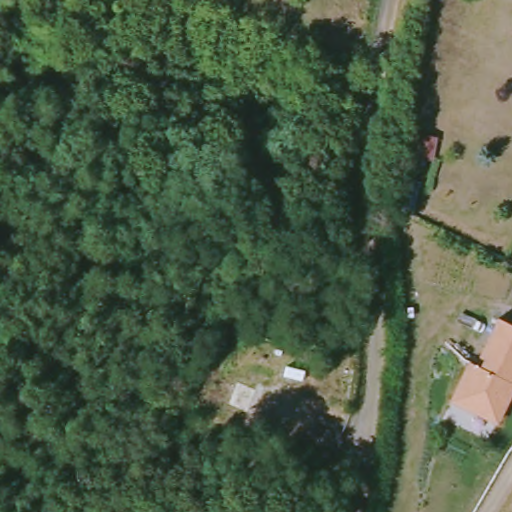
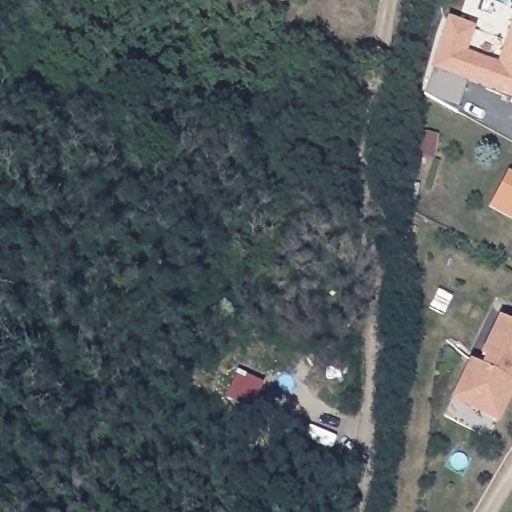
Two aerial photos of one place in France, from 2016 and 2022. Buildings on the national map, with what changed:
new [(467,83),(456,112),(422,96),(432,71),(429,70),(447,20),(475,29),(466,54),(497,63),(512,19),(512,98),(467,83)]
new [(489,207),(507,172),(512,174),(512,219),(489,207)]
unchanged [(462,386),(467,378),(473,367),(483,372),(487,363),(483,361),(501,327),(503,323),(512,328),(512,382),(510,386),(512,387),(512,397),(496,427),(470,413),(453,404),(462,386)]
unchanged [(232,378),(237,378),(248,355),(263,361),(252,382),(262,386),(246,419),(220,406),(226,394),(212,385),(220,370),(232,378)]

